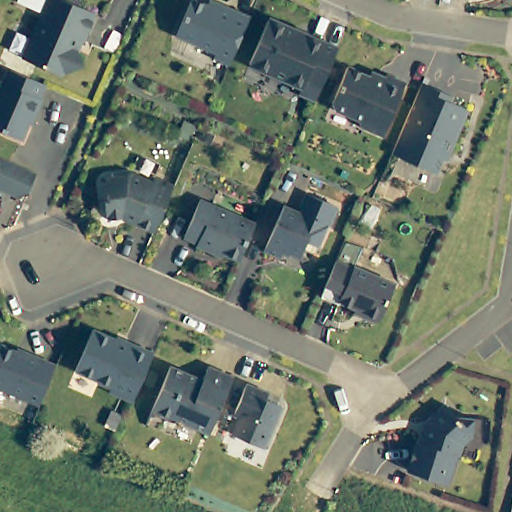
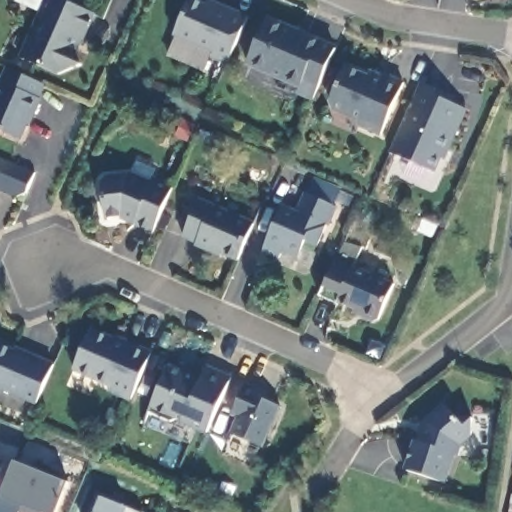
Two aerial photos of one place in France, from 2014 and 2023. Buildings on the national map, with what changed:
unchanged [(99,7),(88,35),(86,34),(82,44),(88,59),(65,67),(27,51),(49,0),(83,0),(99,7)]
unchanged [(220,47),(181,30),(193,0),(214,0),(221,3),(222,0),(229,0),(254,11),(234,59),(217,51),(220,47)]
unchanged [(297,97),(250,76),(248,71),(272,14),(298,25),(296,29),(310,35),(312,31),(342,45),(337,54),(320,95),(305,89),(302,95),(297,97)]
unchanged [(50,77),(43,91),(46,92),(38,109),(36,107),(24,133),(0,123),(0,91),(14,62),(19,64),(50,77)]
unchanged [(373,72),(376,67),(389,74),(390,71),(410,80),(387,130),(365,120),(362,114),(338,104),(336,97),(352,62),(373,72)]
unchanged [(457,92),(455,97),(472,105),(452,150),(449,149),(441,167),(396,149),(425,82),(427,79),(457,92)]
unchanged [(21,195),(0,187),(0,155),(38,171),(31,191),(21,195)]
unchanged [(112,177),(133,175),(134,172),(156,182),(158,177),(177,185),(158,230),(139,221),(142,215),(140,214),(111,217),(107,182),(112,177)]
unchanged [(338,205),(330,224),(327,223),(318,244),(307,240),(301,256),(285,249),(282,255),(267,249),(285,204),(298,210),(307,191),(338,205)]
unchanged [(242,253),(217,242),(216,245),(200,238),(201,235),(187,230),(202,194),(257,217),(242,253)]
unchanged [(355,265),(355,263),(397,281),(382,317),(377,318),(367,315),(364,309),(341,299),(340,301),(322,293),(337,258),(355,265)]
unchanged [(136,393),(113,383),(115,378),(79,363),(96,321),(133,338),(134,336),(157,346),(136,393)]
unchanged [(30,347),(59,360),(41,398),(0,382),(0,349),(4,340),(29,350),(30,347)]
unchanged [(237,381),(221,420),(216,432),(186,418),(180,420),(159,410),(179,365),(195,371),(193,376),(208,382),(216,364),(240,375),(237,381)]
unchanged [(271,385),(267,391),(284,398),(267,440),(235,426),(242,410),(236,407),(249,375),(262,381),(271,385)]
unchanged [(475,431),(463,441),(460,452),(457,451),(448,480),(409,468),(418,438),(420,440),(422,433),(426,435),(430,423),(427,420),(446,401),(457,414),(474,415),(475,431)]
new [(0,470),(0,460),(4,461),(0,470)]
new [(23,512),(0,512),(0,504),(16,461),(69,480),(57,512),(44,512),(25,505),(23,512)]
new [(129,506),(143,512),(95,512),(101,496),(129,506)]

